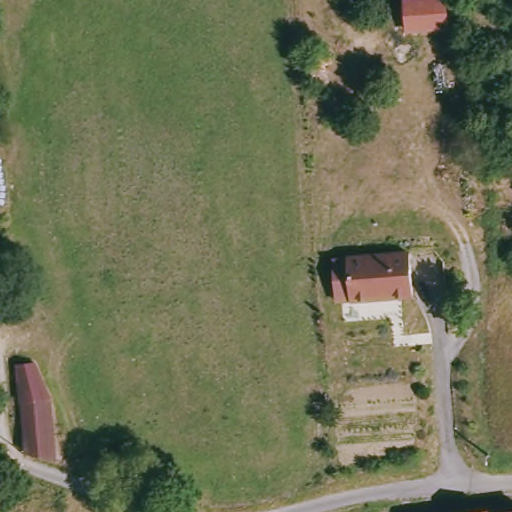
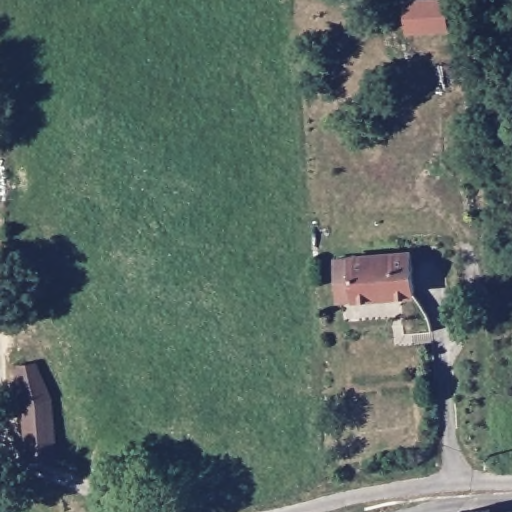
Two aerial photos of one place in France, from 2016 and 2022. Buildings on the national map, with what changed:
unchanged [(403,0),(446,0),(448,32),(404,32),(403,0)]
unchanged [(413,300),(353,296),(338,296),(340,252),(355,254),(415,256),(413,300)]
unchanged [(15,341),(32,343),(57,392),(65,462),(47,457),(30,454),(15,341)]
unchanged [(496,511),(496,512),(486,512),(496,511)]

